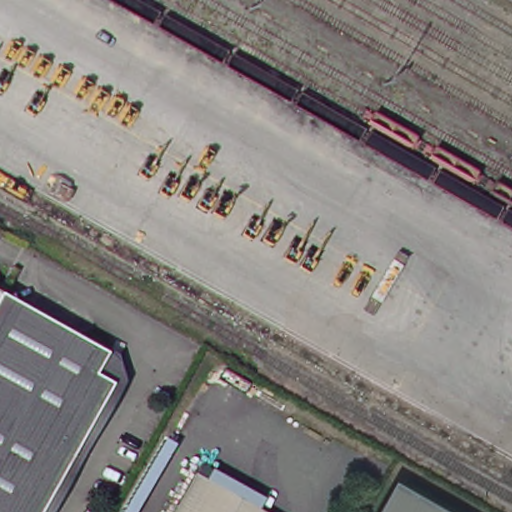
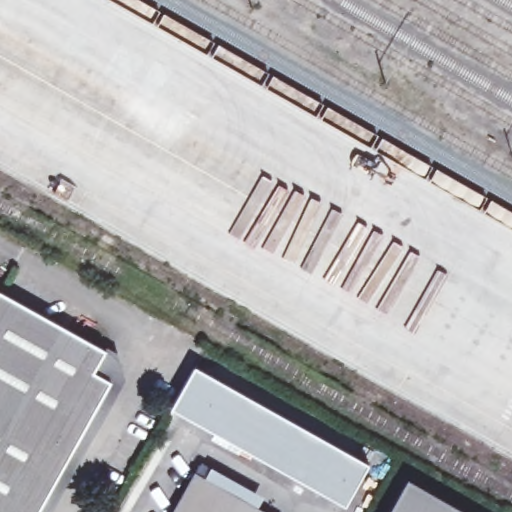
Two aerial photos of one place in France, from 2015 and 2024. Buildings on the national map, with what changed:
unchanged [(5,292),(0,302),(0,286),(7,290),(5,292)]
unchanged [(7,290),(115,346),(103,368),(121,377),(51,512),(0,512),(0,302),(5,292),(7,290)]
new [(194,365),(370,464),(345,507),(170,408),(194,365)]
unchanged [(195,473),(261,512),(174,512),(195,473)]
unchanged [(405,480),(460,512),(389,512),(405,480)]

